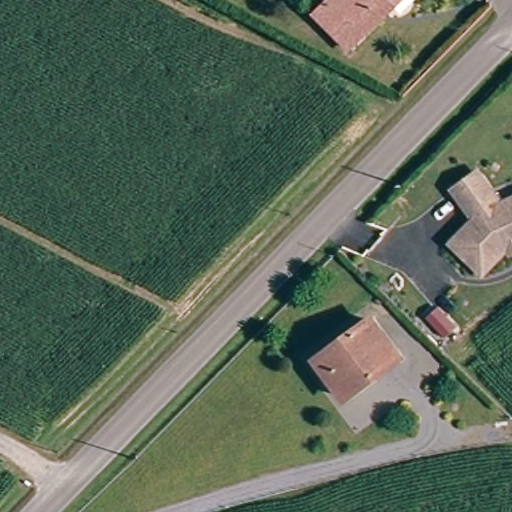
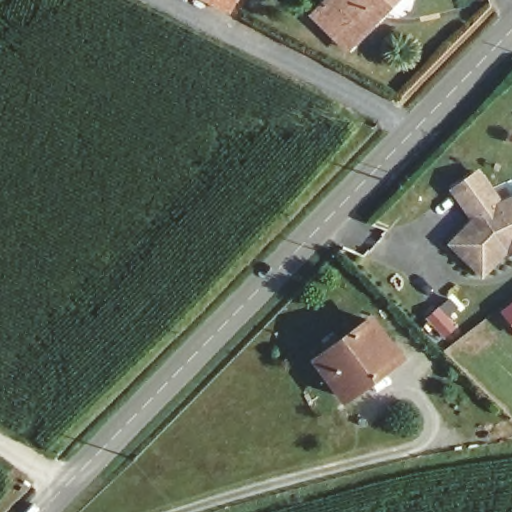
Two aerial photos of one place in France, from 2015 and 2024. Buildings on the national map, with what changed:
new [(229,14),(202,0),(237,0),(229,14)]
unchanged [(318,9),(326,0),(394,0),(391,3),(381,14),(364,32),(353,43),(318,9)]
unchanged [(470,176),(478,170),(481,175),(485,172),(507,205),(512,203),(512,249),(510,250),(486,273),(456,242),(480,220),(460,189),(473,180),(470,176)]
new [(512,300),(512,327),(499,311),(512,300)]
unchanged [(422,317),(439,336),(427,346),(411,327),(422,317)]
unchanged [(344,401),(320,358),(375,323),(400,364),(344,401)]

